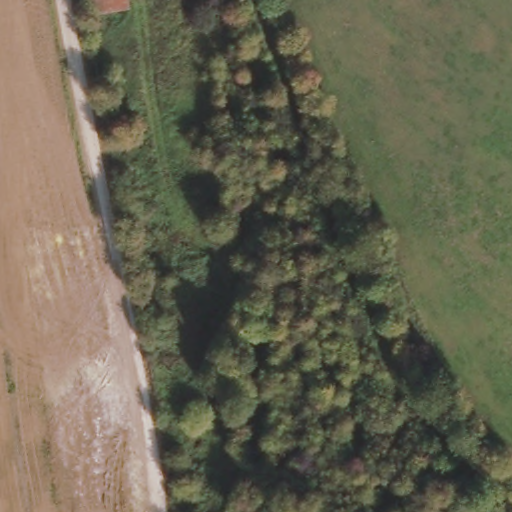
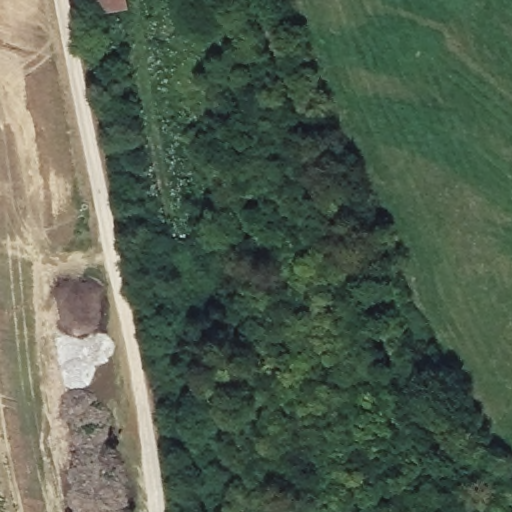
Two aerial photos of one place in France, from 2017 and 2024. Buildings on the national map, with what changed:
unchanged [(92,16),(90,0),(128,0),(130,14),(92,16)]

